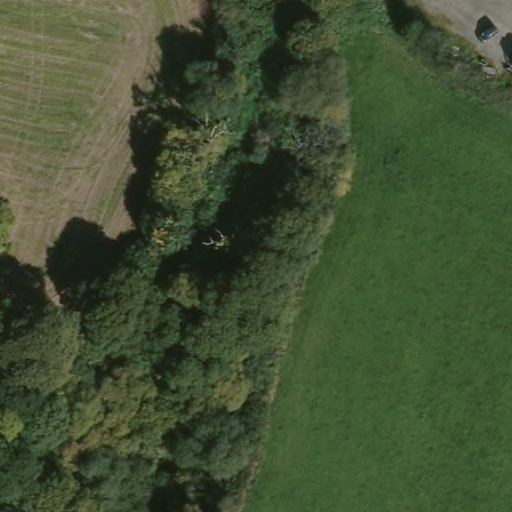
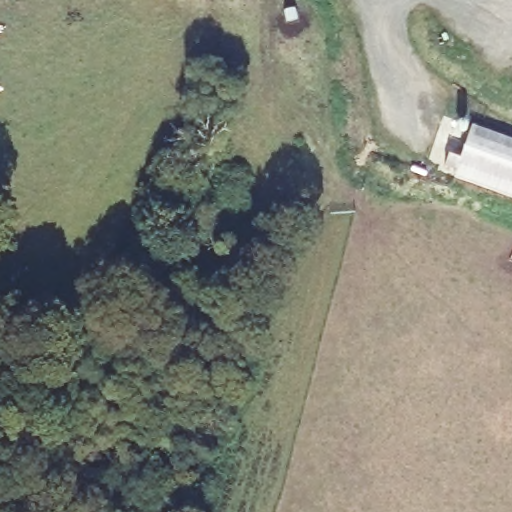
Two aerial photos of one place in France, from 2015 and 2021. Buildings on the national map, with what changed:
new [(512,140),(512,198),(454,178),(457,172),(444,169),(448,157),(460,161),(473,126),(512,140)]

